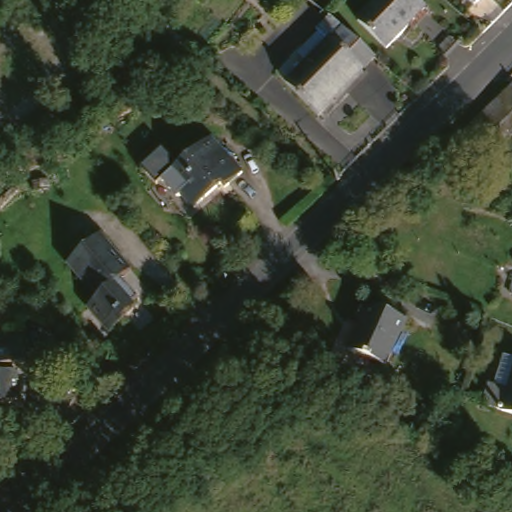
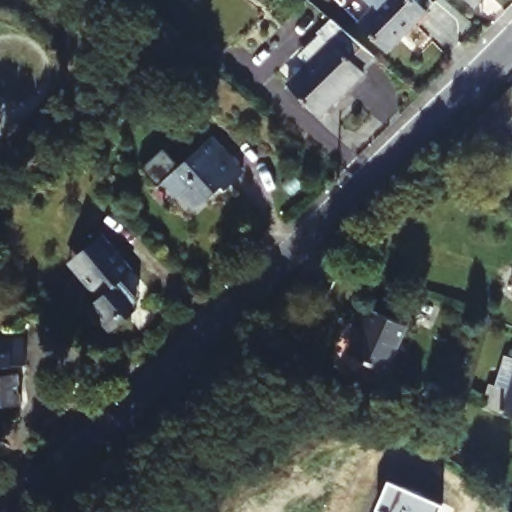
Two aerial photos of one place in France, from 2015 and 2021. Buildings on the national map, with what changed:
unchanged [(391,46),(362,18),(380,0),(418,0),(427,9),(391,46)]
unchanged [(465,0),(483,0),(473,9),(465,0)]
unchanged [(361,72),(363,74),(322,123),(288,95),(307,73),(294,62),(316,36),(327,22),(372,59),(361,72)]
unchanged [(512,138),(489,158),(466,132),(512,94),(512,138)]
unchanged [(144,165),(159,144),(175,160),(214,140),(245,175),(226,193),(222,189),(195,214),(182,199),(179,202),(164,185),(144,165)]
unchanged [(117,283),(131,298),(116,313),(119,316),(106,328),(75,296),(84,288),(65,268),(97,237),(130,271),(117,283)]
unchanged [(510,280),(512,281),(512,299),(505,297),(510,280)]
unchanged [(408,326),(390,373),(350,357),(357,341),(362,343),(367,329),(357,325),(363,309),(408,326)]
unchanged [(21,336),(25,365),(11,367),(12,373),(19,372),(23,404),(2,406),(1,395),(0,396),(0,339),(21,336)]
unchanged [(503,385),(505,386),(512,362),(512,413),(495,408),(503,385)]
new [(388,481),(443,505),(440,512),(383,512),(376,509),(388,481)]

